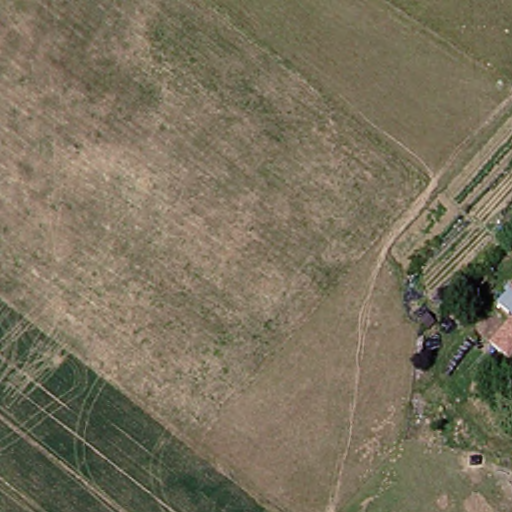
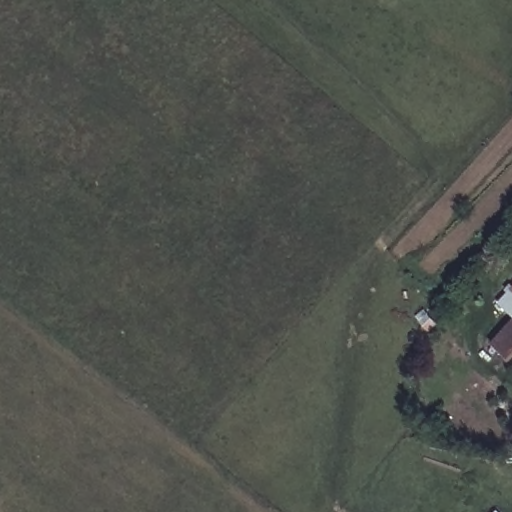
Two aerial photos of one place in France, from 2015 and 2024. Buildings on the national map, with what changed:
unchanged [(512,356),(496,343),(512,326),(512,356)]

